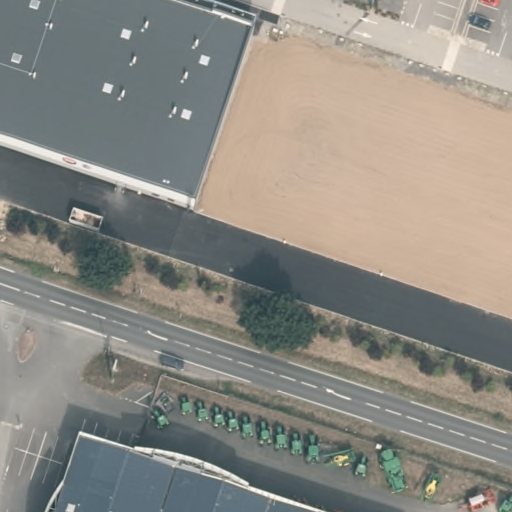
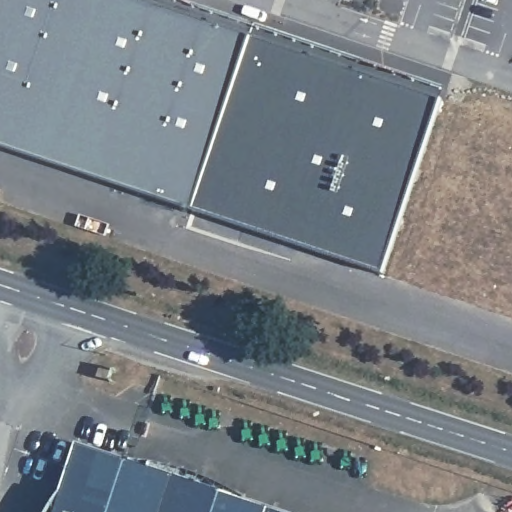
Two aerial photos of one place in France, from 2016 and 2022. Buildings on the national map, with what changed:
unchanged [(0,145),(0,0),(140,0),(249,37),(194,210),(0,145)]
new [(140,0),(185,0),(447,89),(386,273),(194,210),(249,37),(140,0)]
unchanged [(284,512),(54,512),(75,445),(284,512)]

